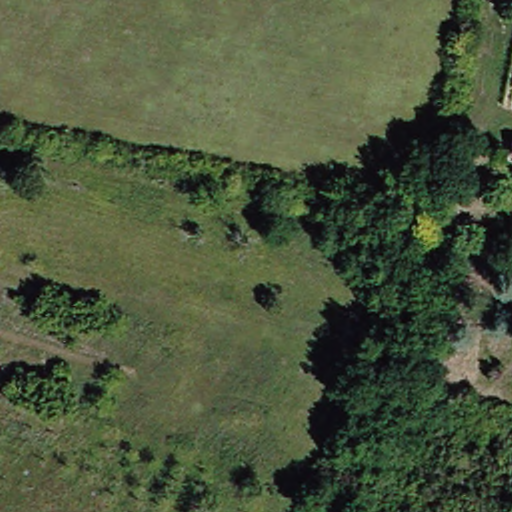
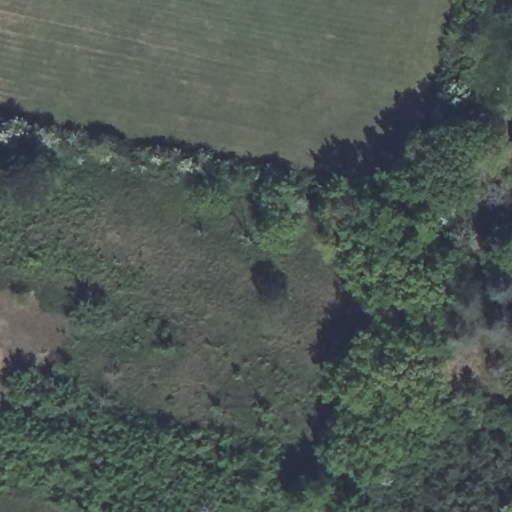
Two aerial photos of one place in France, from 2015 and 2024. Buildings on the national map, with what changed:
unchanged [(505,197),(512,196),(512,212),(507,212),(505,197)]

